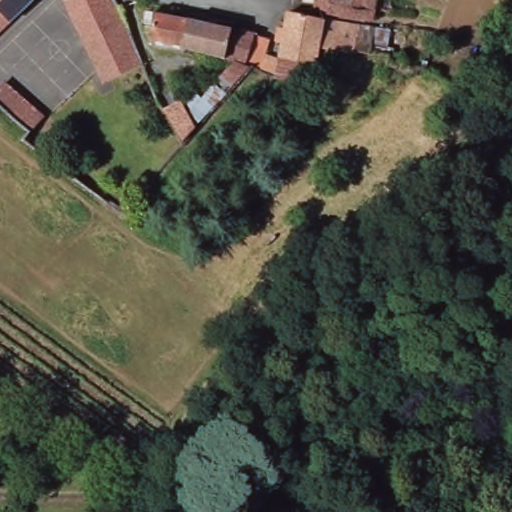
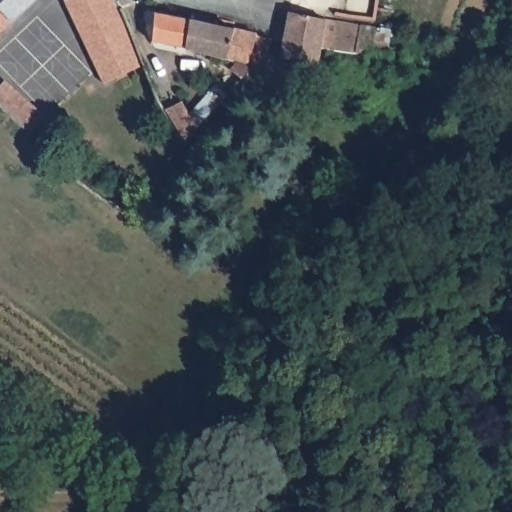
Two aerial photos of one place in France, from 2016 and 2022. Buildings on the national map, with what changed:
unchanged [(0,29),(0,0),(32,0),(0,29)]
unchanged [(119,10),(142,66),(100,84),(62,1),(64,0),(113,0),(119,10)]
unchanged [(319,8),(320,0),(383,0),(381,9),(379,18),(376,18),(356,15),(319,9),(319,8)]
unchanged [(194,18),(187,47),(177,45),(174,59),(153,54),(159,12),(194,18)]
unchanged [(281,94),(285,78),(270,72),(253,66),(237,61),(229,58),(237,29),(273,38),(270,54),(283,60),(288,33),(293,12),(327,18),(380,27),(390,28),(390,37),(379,36),(376,53),(343,49),(325,47),(322,62),(325,63),(322,83),(321,86),(316,85),(313,101),(281,94)]
unchanged [(237,29),(229,58),(187,47),(194,18),(237,29)]
unchanged [(198,84),(206,91),(232,69),(244,80),(187,141),(170,113),(198,84)]
unchanged [(44,116),(30,133),(0,108),(0,85),(3,81),(44,116)]
unchanged [(336,362),(337,359),(338,357),(342,357),(354,362),(357,364),(357,366),(357,369),(355,370),(352,371),(337,364),(336,362)]

